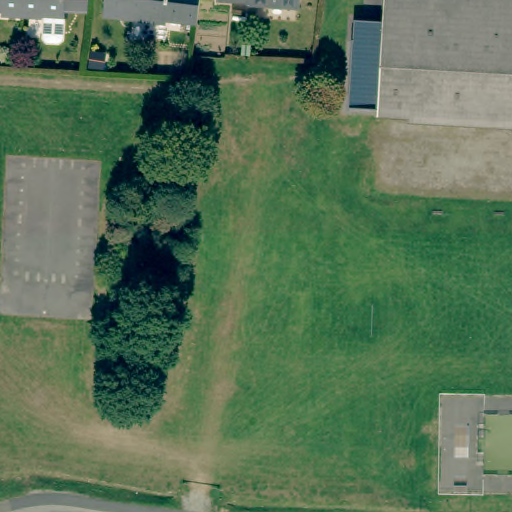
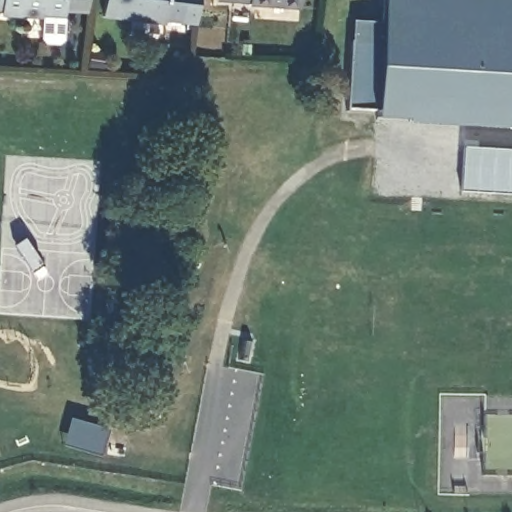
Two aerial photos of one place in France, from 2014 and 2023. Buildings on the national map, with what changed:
unchanged [(2,16),(2,11),(0,11),(0,0),(65,0),(64,20),(2,16)]
unchanged [(160,20),(98,12),(99,0),(194,0),(191,20),(161,16),(160,20)]
unchanged [(244,1),(244,0),(294,0),(294,5),(244,1)]
unchanged [(382,24),(383,0),(512,0),(512,119),(377,110),(382,24)]
unchanged [(348,111),(355,22),(382,24),(377,110),(348,111)]
new [(512,195),(461,192),(463,148),(512,151),(512,195)]

